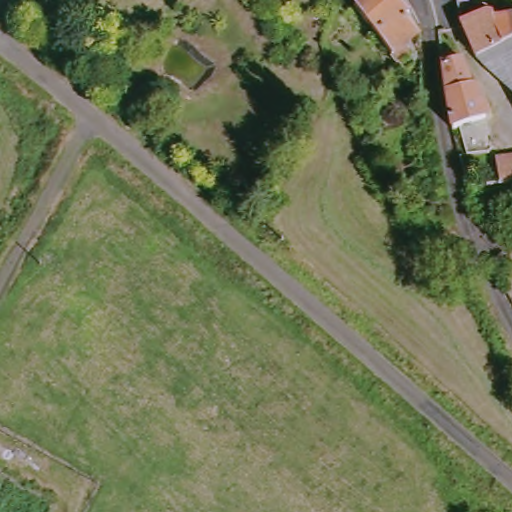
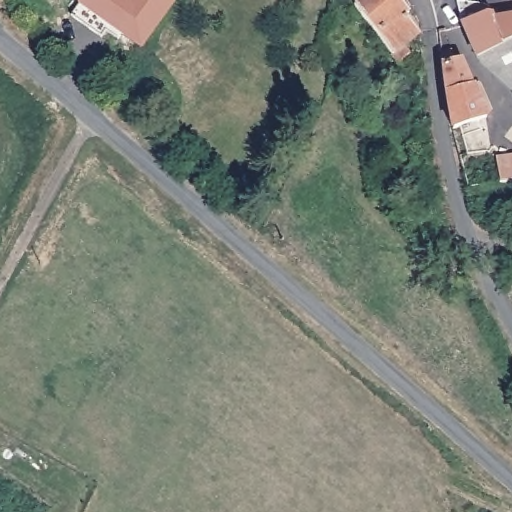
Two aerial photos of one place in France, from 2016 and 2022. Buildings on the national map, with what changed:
new [(117,40),(106,31),(102,36),(72,15),(83,0),(172,0),(174,1),(142,46),(122,34),(117,40)]
unchanged [(414,14),(427,32),(412,45),(418,54),(406,62),(360,5),(365,0),(407,0),(417,11),(414,14)]
unchanged [(512,0),(512,2),(510,1),(506,0),(512,0)]
unchanged [(464,2),(479,3),(496,7),(500,18),(512,15),(512,42),(484,56),(470,23),(464,2)]
unchanged [(490,65),(484,56),(512,42),(512,78),(503,74),(490,65)]
unchanged [(491,110),(485,113),(488,119),(456,129),(448,92),(444,57),(450,56),(451,63),(464,60),(474,85),(481,84),(491,110)]
unchanged [(512,162),(512,183),(506,184),(504,163),(512,162)]

